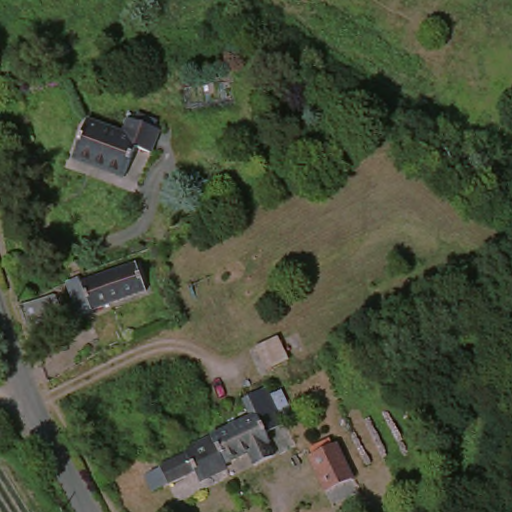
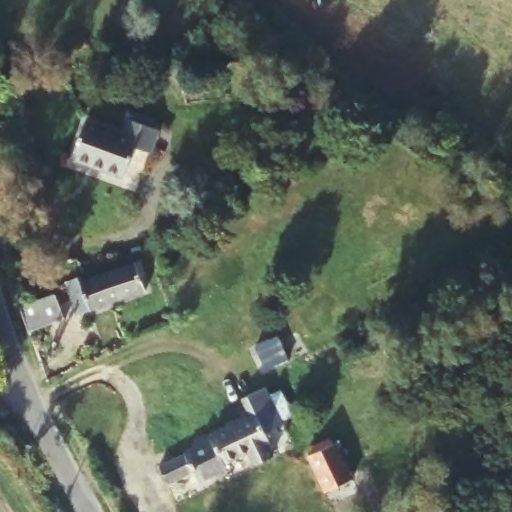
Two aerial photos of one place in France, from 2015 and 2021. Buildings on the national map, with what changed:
unchanged [(85,127),(122,140),(127,125),(158,135),(150,160),(135,155),(125,184),(72,165),(85,127)]
unchanged [(129,264),(140,293),(85,314),(73,286),(129,264)]
unchanged [(55,300),(66,326),(29,340),(19,314),(55,300)]
unchanged [(292,427),(277,435),(280,443),(275,445),(282,458),(263,467),(257,455),(233,466),(235,470),(206,484),(202,475),(177,487),(167,467),(221,443),(219,437),(258,419),(250,401),(275,389),(292,427)]
unchanged [(344,488),(318,500),(300,462),(306,459),(305,455),(319,449),(321,453),(327,450),(344,488)]

